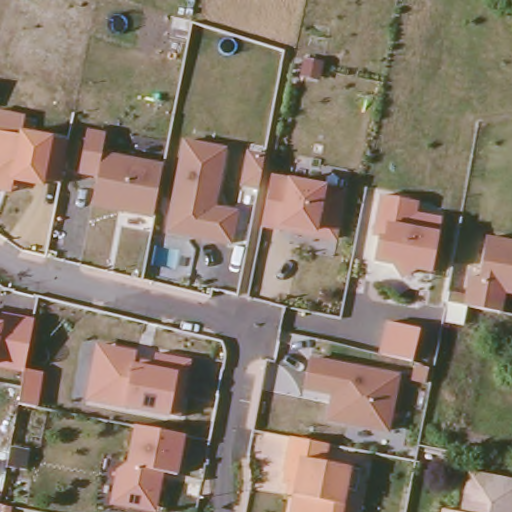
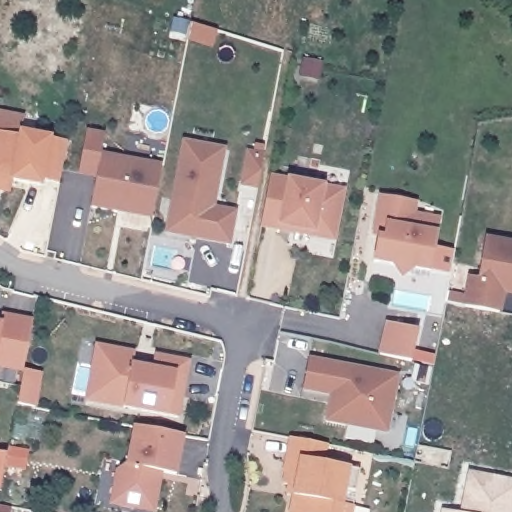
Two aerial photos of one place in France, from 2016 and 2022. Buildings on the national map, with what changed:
unchanged [(21,131),(54,137),(54,141),(68,143),(60,186),(46,183),(44,189),(14,182),(11,196),(0,193),(0,133),(20,138),(21,131)]
unchanged [(98,187),(80,184),(88,143),(106,146),(102,166),(163,177),(154,227),(93,216),(98,187)]
unchanged [(167,242),(183,152),(224,160),(216,202),(213,218),(236,223),(230,254),(193,247),(180,245),(167,242)]
unchanged [(336,249),(314,245),(314,241),(283,235),(282,239),(262,236),(271,188),(344,200),(336,249)]
unchanged [(402,288),(394,277),(374,274),(379,249),(384,250),(386,243),(374,241),(380,207),(407,212),(404,224),(439,231),(430,284),(429,293),(402,288)]
unchanged [(512,241),(512,291),(502,289),(498,310),(464,304),(469,274),(477,276),(484,236),(512,241)]
unchanged [(494,330),(441,320),(446,301),(464,304),(498,310),(494,330)]
unchanged [(35,321),(26,372),(0,367),(0,323),(1,313),(35,321)]
unchanged [(379,364),(387,333),(418,340),(411,371),(379,364)]
unchanged [(98,354),(113,357),(137,362),(136,370),(155,374),(157,363),(191,370),(180,427),(88,409),(94,374),(98,354)]
unchanged [(399,386),(389,441),(329,430),(333,413),(336,410),(338,404),(306,398),(311,369),(399,386)]
unchanged [(133,506),(121,504),(115,494),(119,470),(130,463),(138,425),(186,435),(178,474),(164,472),(163,481),(158,505),(156,511),(133,506)]
unchanged [(291,504),(292,495),(287,494),(289,483),(286,482),(293,448),(302,450),(329,455),(326,473),(363,480),(359,502),(348,500),(345,512),(295,512),(296,505),(291,504)]
unchanged [(449,474),(415,467),(418,450),(453,457),(449,474)]
unchanged [(28,478),(11,475),(14,457),(31,460),(28,478)]
unchanged [(512,485),(512,512),(463,512),(469,478),(512,485)]

